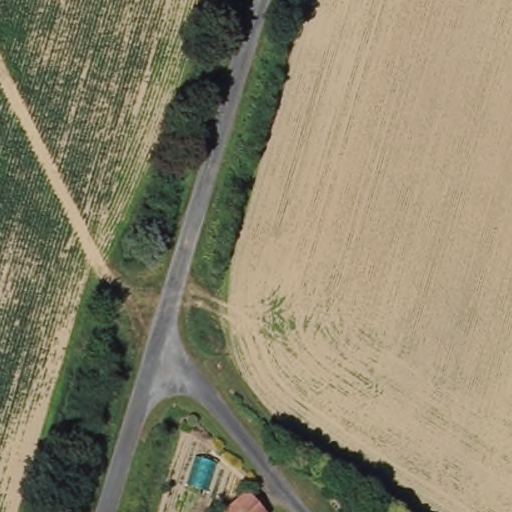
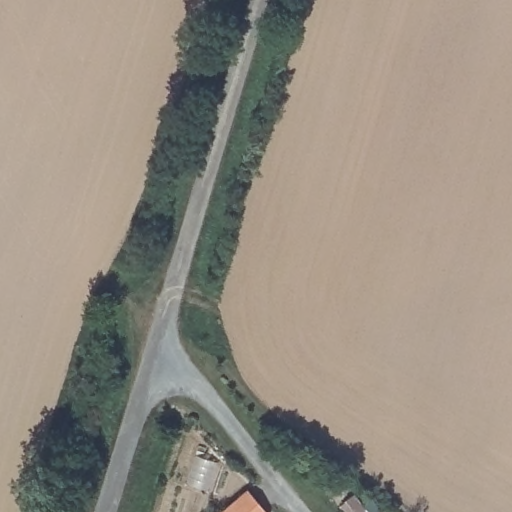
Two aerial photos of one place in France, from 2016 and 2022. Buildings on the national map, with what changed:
unchanged [(230,512),(254,489),(273,512),(230,512)]

